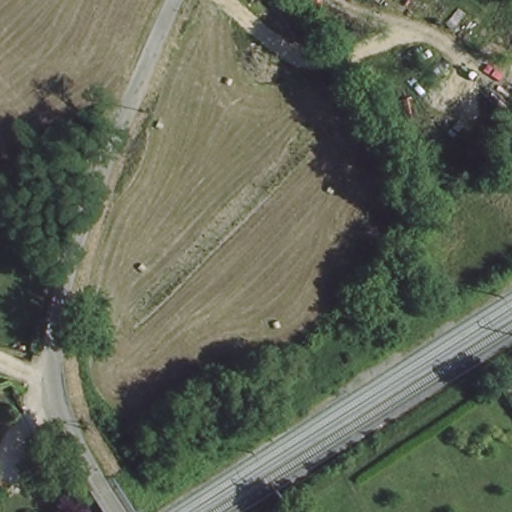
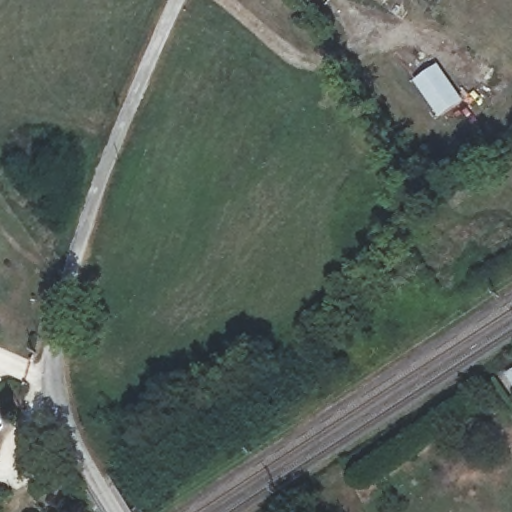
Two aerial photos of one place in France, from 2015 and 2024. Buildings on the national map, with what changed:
new [(415,81),(438,65),(465,102),(442,119),(415,81)]

